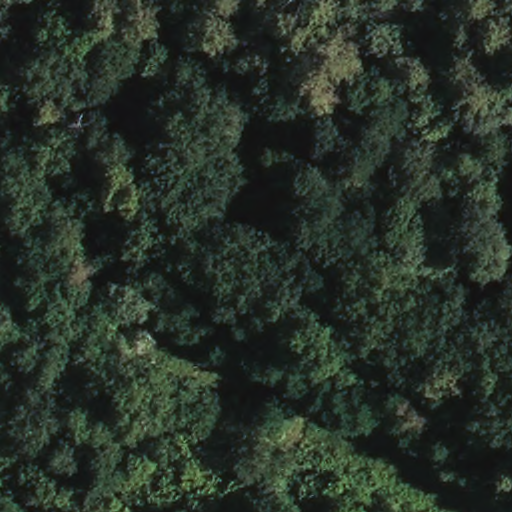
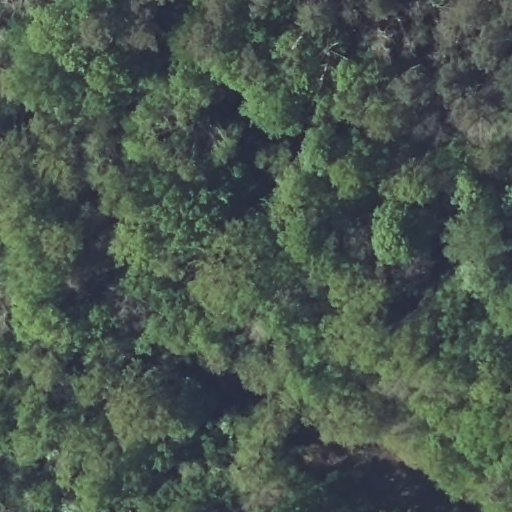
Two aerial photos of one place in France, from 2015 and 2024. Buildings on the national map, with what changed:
[]

